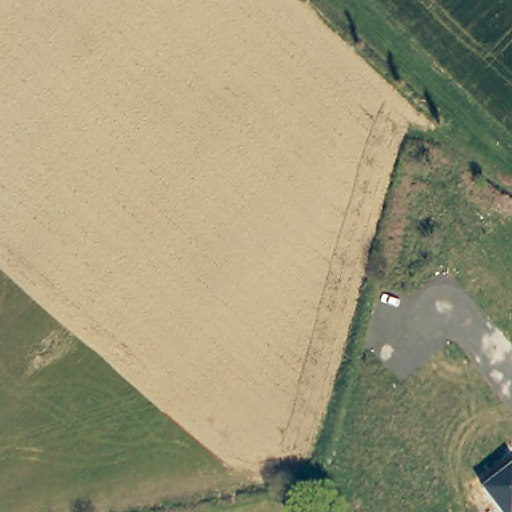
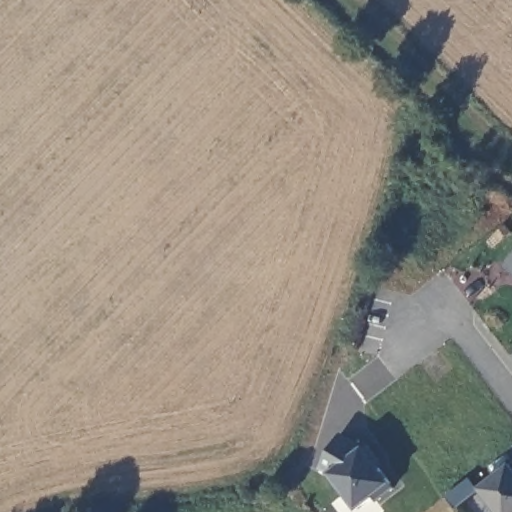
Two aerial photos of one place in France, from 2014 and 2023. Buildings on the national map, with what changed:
new [(360,511),(334,475),(323,470),(342,433),(369,446),(397,485),(360,511)]
unchanged [(483,492),(512,468),(512,512),(498,512),(483,492)]

